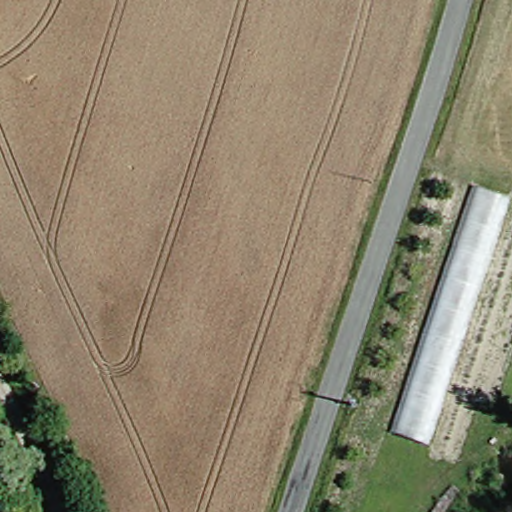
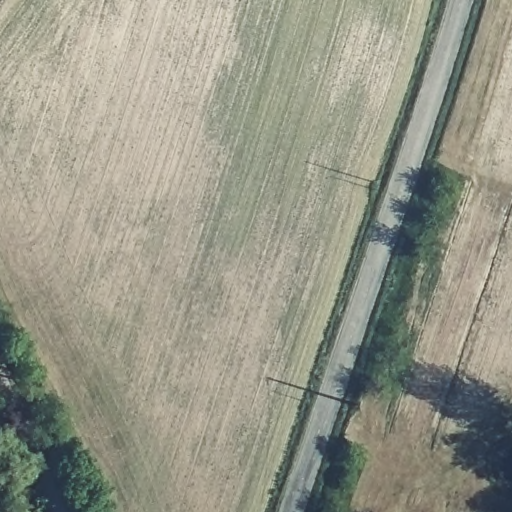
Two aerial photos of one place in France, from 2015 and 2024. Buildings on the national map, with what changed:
new [(477,188),(507,198),(426,445),(395,434),(477,188)]

